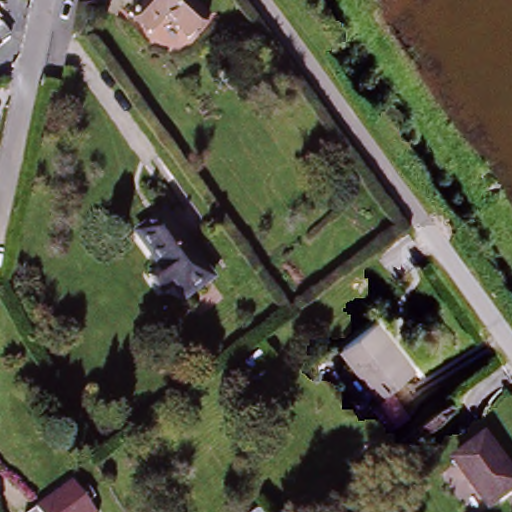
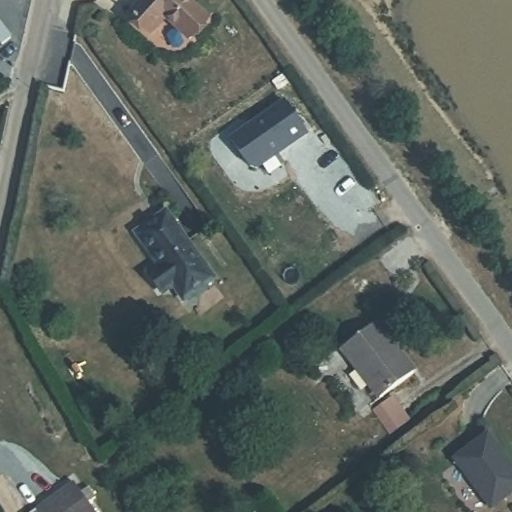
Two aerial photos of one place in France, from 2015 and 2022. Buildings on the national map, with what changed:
unchanged [(155,28),(135,9),(144,0),(197,0),(214,17),(192,37),(170,14),(155,28)]
unchanged [(0,46),(0,37),(4,44),(0,46)]
new [(285,102),(307,134),(257,170),(251,168),(231,140),(285,102)]
unchanged [(163,256),(138,221),(166,202),(217,272),(190,291),(176,271),(167,277),(156,260),(163,256)]
unchanged [(411,366),(377,392),(343,347),(377,321),(411,366)]
unchanged [(394,397),(410,419),(395,430),(379,407),(394,397)]
unchanged [(488,507),(452,461),(486,433),(512,467),(512,487),(488,507)]
unchanged [(99,512),(43,512),(74,492),(81,502),(89,497),(99,512)]
unchanged [(267,512),(254,512),(262,507),(267,512)]

